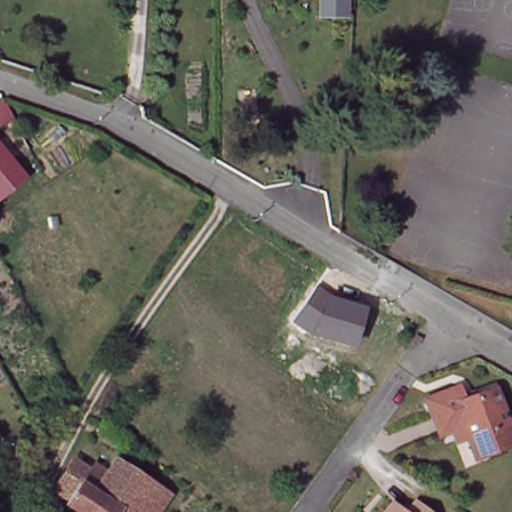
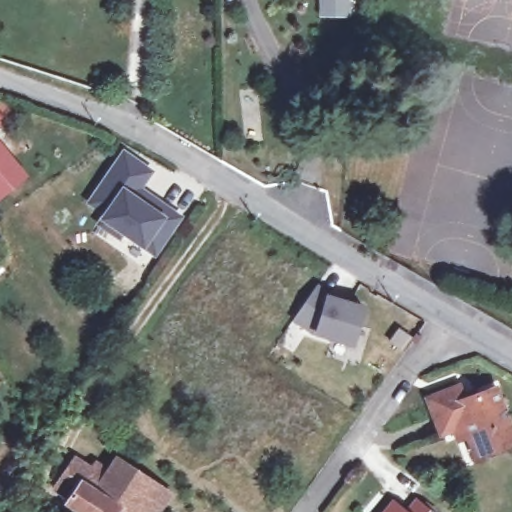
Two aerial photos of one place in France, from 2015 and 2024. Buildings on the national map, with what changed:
unchanged [(0,115),(9,111),(17,127),(0,136),(0,115)]
new [(154,173),(142,189),(184,218),(157,259),(141,249),(125,237),(121,243),(95,226),(98,221),(102,214),(87,204),(123,151),(154,173)]
unchanged [(0,202),(0,158),(25,187),(3,206),(0,202)]
new [(364,305),(354,347),(312,336),(291,321),(317,285),(327,288),(326,294),(364,305)]
unchanged [(458,430),(447,433),(433,400),(464,388),(469,401),(499,390),(512,426),(512,447),(481,458),(473,436),(462,440),(458,430)]
unchanged [(115,463),(170,499),(161,512),(120,512),(118,511),(117,512),(75,512),(66,506),(68,502),(53,492),(75,462),(88,471),(92,465),(102,470),(109,475),(115,463)]
unchanged [(422,501),(434,512),(412,512),(422,501)]
unchanged [(397,502),(410,512),(389,512),(397,502)]

